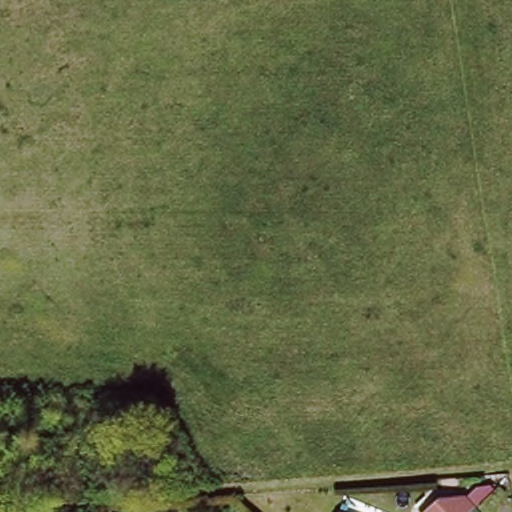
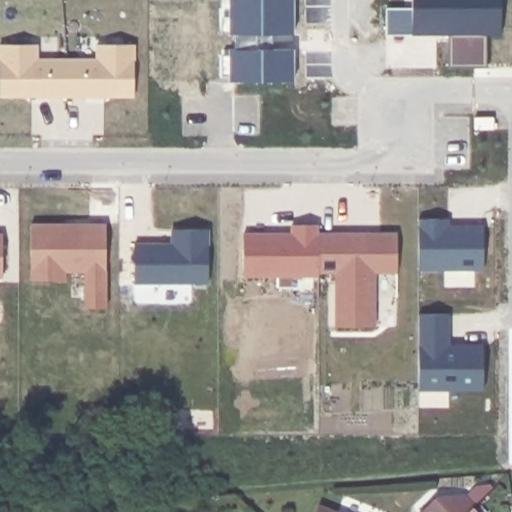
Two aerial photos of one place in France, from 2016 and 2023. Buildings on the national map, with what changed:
new [(229,50),(235,49),(235,34),(229,34),(229,16),(221,16),(221,0),(294,0),(294,34),(272,34),(273,49),(293,49),(293,81),(229,81),(229,76),(221,76),(221,54),(229,54),(229,50)]
new [(412,0),(501,0),(501,35),(487,35),(487,67),(449,67),(449,35),(412,35),(412,0)]
new [(36,45),(36,60),(66,60),(66,96),(0,96),(0,45),(36,45)]
new [(96,60),(96,45),(133,45),(133,96),(66,96),(66,60),(96,60)]
new [(474,118),(493,118),(493,129),(474,129),(474,118)]
new [(448,219),(448,229),(453,229),(455,225),(483,225),(483,269),(418,269),(417,219),(448,219)]
new [(63,224),(88,224),(105,224),(105,307),(84,307),(84,271),(64,271),(65,280),(30,280),(30,224),(63,224)]
new [(291,233),(291,224),(301,225),(317,225),(317,276),(242,276),(243,233),(291,233)]
new [(164,244),(165,246),(171,246),(171,230),(208,229),(208,282),(133,283),(133,244),(164,244)]
new [(1,234),(1,276),(0,277),(0,234),(1,234)]
new [(318,234),(396,234),(396,271),(374,271),(374,326),(336,326),(336,271),(318,271),(318,234)]
new [(448,314),(448,345),(483,345),(483,390),(418,390),(417,313),(448,314)]
unchanged [(468,492),(475,502),(464,512),(419,512),(438,494),(468,492)]
unchanged [(342,512),(337,512),(338,510),(342,512)]

